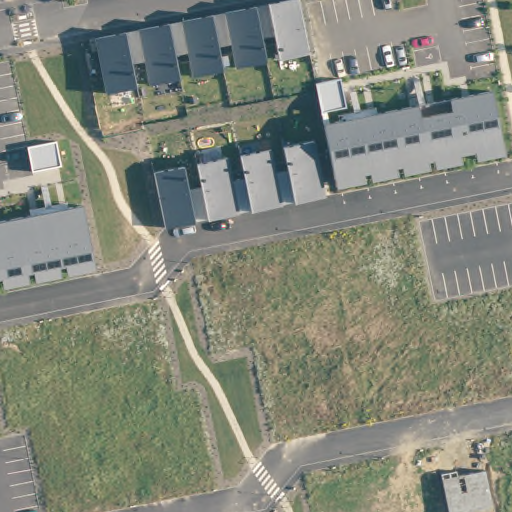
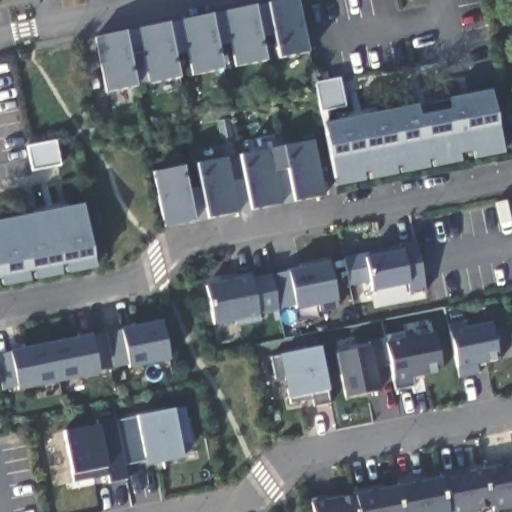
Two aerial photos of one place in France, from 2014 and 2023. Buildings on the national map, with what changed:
unchanged [(310,52),(278,59),(274,37),(263,40),(267,62),(237,67),(233,47),(219,51),(223,71),(192,77),(188,55),(178,58),(183,77),(150,83),(146,62),(132,65),(137,86),(105,93),(96,36),(288,0),(299,0),(310,52)]
unchanged [(352,116),(327,121),(321,92),(346,87),(352,116)]
unchanged [(497,99),(508,154),(340,187),(329,132),(497,99)]
unchanged [(155,172),(184,165),(189,191),(202,187),(196,162),(229,156),(234,181),(246,178),(240,152),(272,147),(277,174),(286,171),(282,145),(316,139),(325,195),(165,227),(155,172)]
unchanged [(32,171),(28,146),(56,141),(61,167),(32,171)]
unchanged [(0,289),(0,220),(33,215),(30,209),(66,202),(69,208),(84,206),(97,270),(0,289)]
new [(400,246),(399,242),(416,240),(425,292),(409,296),(409,284),(371,292),(369,283),(348,287),(343,258),(400,246)]
new [(223,282),(221,277),(250,273),(251,277),(287,272),(287,270),(299,267),(297,263),(326,257),(328,262),(337,303),(339,310),(319,312),(319,305),(295,309),(258,315),(260,321),(234,326),(235,322),(213,326),(205,285),(223,282)]
new [(465,321),(467,328),(491,323),(497,362),(475,365),(478,374),(458,378),(448,323),(465,321)]
new [(160,323),(168,362),(17,390),(2,391),(0,381),(0,355),(10,353),(160,323)]
new [(370,346),(368,341),(384,339),(383,335),(404,332),(405,338),(434,333),(442,372),(411,378),(413,387),(394,390),(393,381),(389,366),(374,367),(379,392),(344,398),(335,355),(370,346)]
new [(279,355),(319,347),(327,392),(329,402),(314,406),(313,397),(290,402),(289,397),(287,398),(284,377),(274,380),(270,357),(279,355)]
new [(73,473),(65,431),(100,425),(99,420),(119,417),(119,421),(135,417),(173,409),(186,406),(193,441),(179,443),(183,458),(146,466),(145,460),(125,463),(128,480),(110,482),(108,468),(73,473)]
new [(325,496),(327,501),(354,497),(354,493),(441,478),(439,473),(470,467),(471,471),(486,468),(484,463),(512,459),(512,509),(494,512),(491,512),(491,507),(473,511),(473,512),(313,512),(312,504),(309,500),(325,496)]

